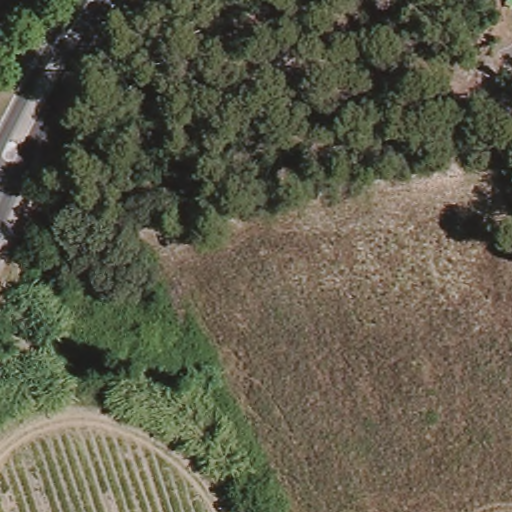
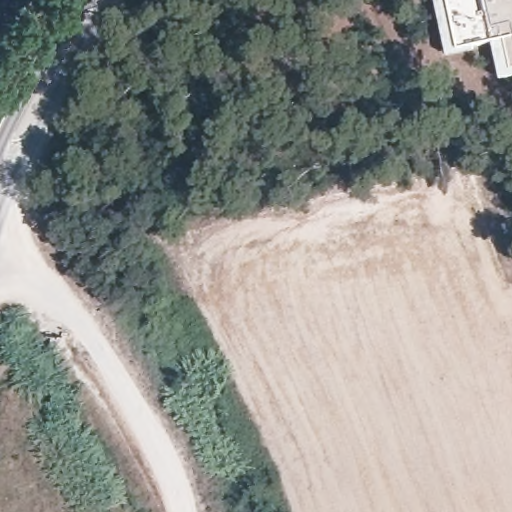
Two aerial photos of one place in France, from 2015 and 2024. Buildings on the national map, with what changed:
new [(506,37),(459,48),(449,0),(512,0),(512,69),(506,37)]

